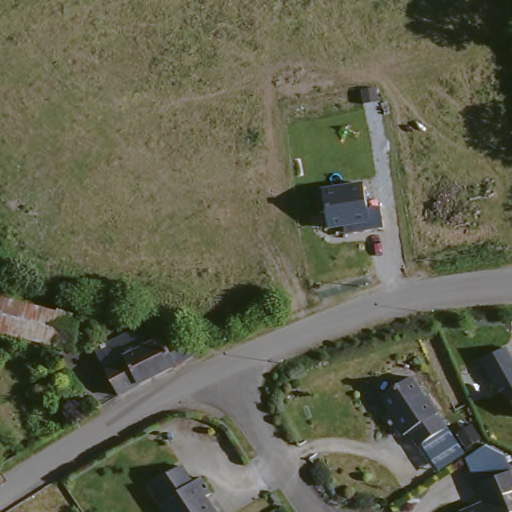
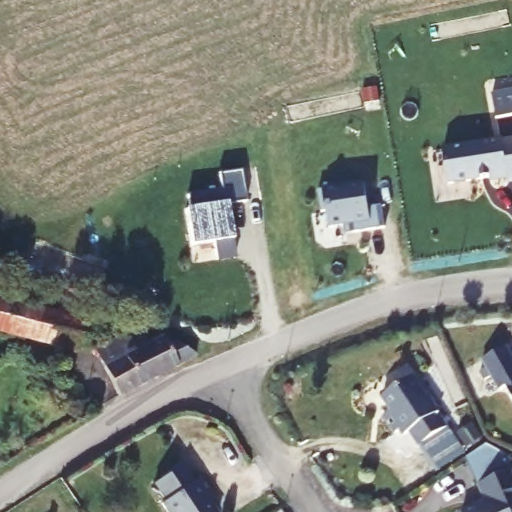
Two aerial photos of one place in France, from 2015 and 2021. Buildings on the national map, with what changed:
new [(512,88),(512,113),(495,116),(492,91),(512,88)]
new [(512,134),(512,178),(506,179),(505,174),(489,176),(489,174),(447,180),(442,147),(512,134)]
new [(186,195),(220,190),(218,173),(241,170),(245,201),(226,204),(229,224),(234,257),(214,259),(212,242),(189,245),(184,209),(188,209),(186,195)]
unchanged [(329,229),(327,210),(322,211),(319,190),(323,188),(364,182),(368,208),(381,207),(384,227),(346,233),(345,226),(329,229)]
unchanged [(61,350),(0,333),(0,295),(73,315),(61,350)]
unchanged [(135,336),(145,349),(157,343),(163,351),(173,345),(183,364),(118,398),(92,359),(135,336)]
unchanged [(499,351),(512,371),(512,408),(503,392),(495,397),(475,366),(499,351)]
unchanged [(409,377),(420,397),(427,394),(449,428),(419,447),(408,433),(402,436),(398,431),(392,432),(378,410),(381,406),(378,397),(409,377)]
unchanged [(190,488),(199,483),(210,500),(203,506),(206,512),(161,512),(159,509),(160,503),(151,489),(180,471),(190,488)]
unchanged [(476,492),(511,478),(512,480),(512,499),(503,503),(506,512),(473,512),(482,508),(476,492)]

